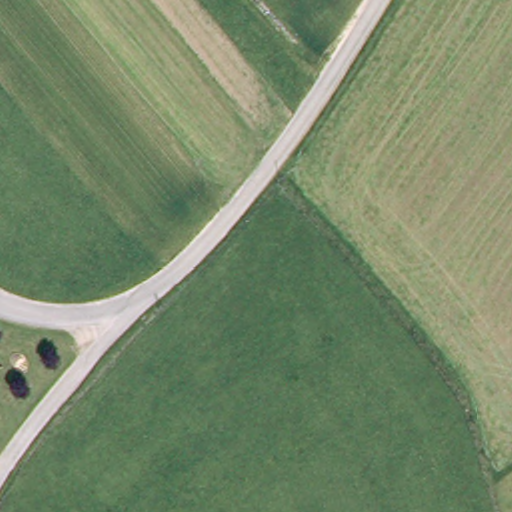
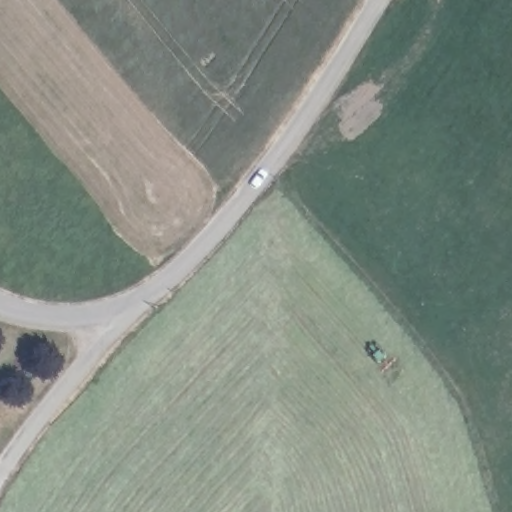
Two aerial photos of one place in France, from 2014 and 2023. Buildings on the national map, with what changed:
[]

